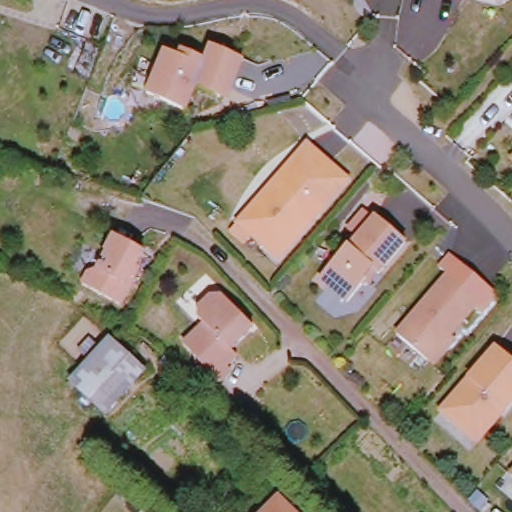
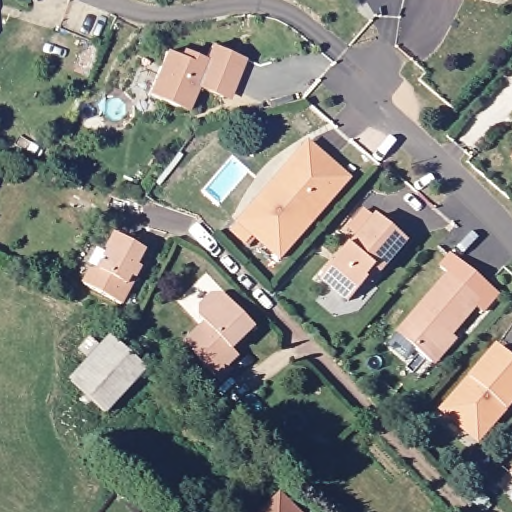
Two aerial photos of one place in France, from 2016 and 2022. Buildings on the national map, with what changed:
unchanged [(225,89),(221,99),(196,88),(185,112),(148,96),(166,52),(175,56),(184,53),(206,63),(213,48),(243,62),(231,91),(225,89)]
unchanged [(351,186),(279,263),(238,225),(268,194),(291,169),(311,148),(351,186)]
unchanged [(372,282),(364,283),(347,300),(320,274),(349,243),(351,244),(378,214),(409,242),(381,272),(379,271),(372,280),(372,282)]
unchanged [(124,305),(86,285),(92,274),(102,271),(111,254),(110,253),(119,237),(148,253),(140,268),(143,270),(138,280),(133,288),(124,305)]
unchanged [(429,365),(424,361),(395,332),(452,276),(481,305),(448,338),(452,342),(429,365)]
unchanged [(194,335),(211,323),(207,318),(208,307),(221,298),(233,299),(259,335),(234,353),(239,360),(228,369),(232,374),(219,383),(196,353),(188,341),(194,335)]
unchanged [(71,389),(111,344),(146,375),(107,420),(71,389)]
unchanged [(444,408),(500,345),(512,356),(512,405),(508,409),(479,440),(474,435),(444,408)]
unchanged [(285,502),(293,512),(274,512),(285,502)]

